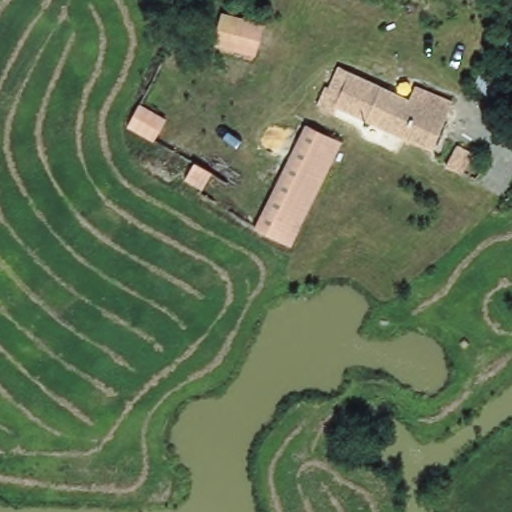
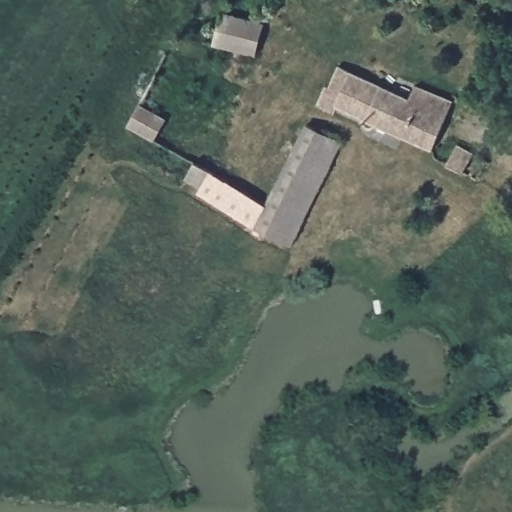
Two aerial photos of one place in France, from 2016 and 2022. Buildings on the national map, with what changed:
unchanged [(256,56),(211,45),(220,11),(265,22),(256,56)]
unchanged [(506,33),(512,36),(512,62),(499,57),(506,33)]
unchanged [(433,150),(337,108),(335,112),(317,104),(325,85),(328,86),(337,64),(409,97),(415,85),(452,100),(433,150)]
unchanged [(495,103),(469,90),(478,69),(504,82),(495,103)]
unchanged [(153,142),(126,128),(140,103),(166,118),(153,142)]
unchanged [(290,245),(254,227),(305,124),(340,142),(290,245)]
unchanged [(463,175),(444,165),(457,143),(473,152),(463,175)]
unchanged [(201,190),(183,180),(192,165),(196,160),(214,171),(201,190)]

